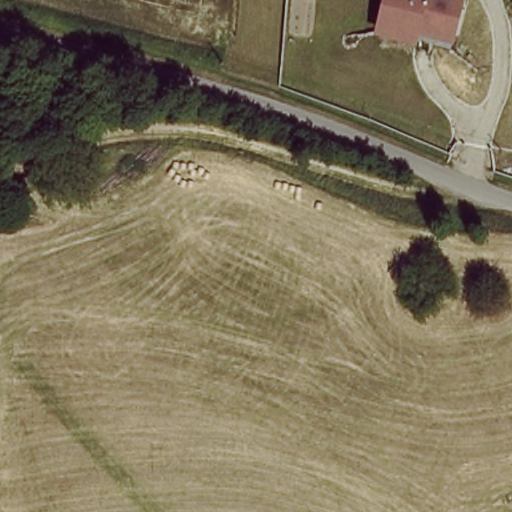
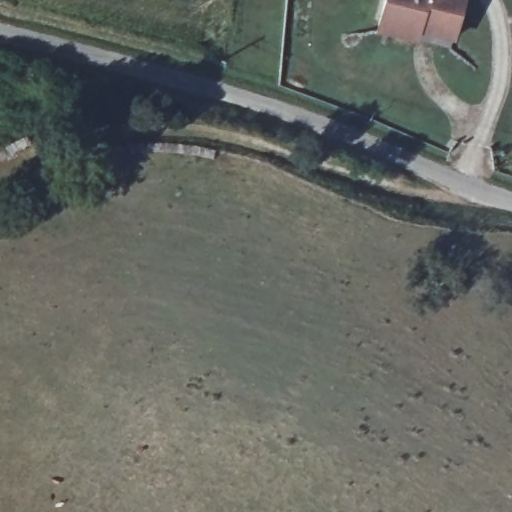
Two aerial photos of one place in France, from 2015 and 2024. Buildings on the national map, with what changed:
unchanged [(381,30),(389,0),(466,0),(454,48),(381,30)]

